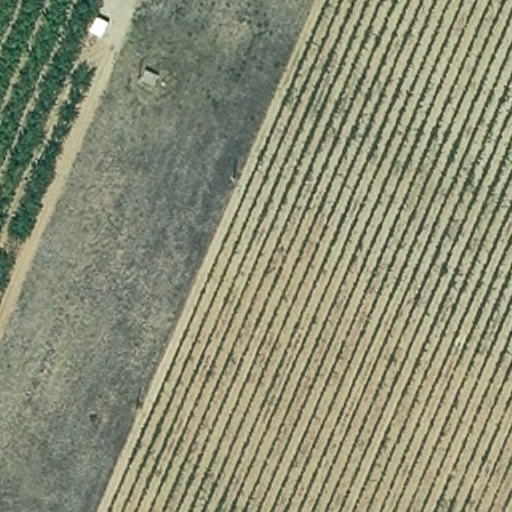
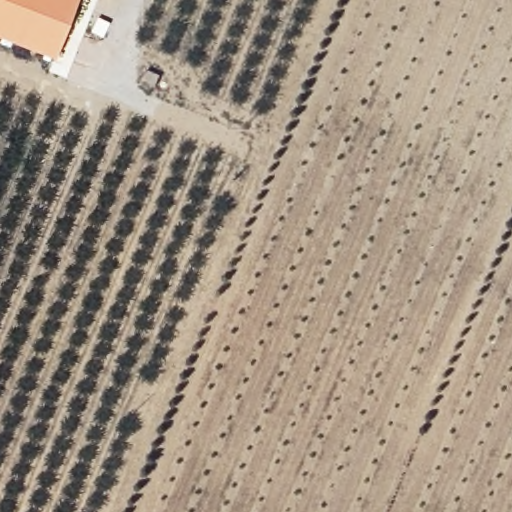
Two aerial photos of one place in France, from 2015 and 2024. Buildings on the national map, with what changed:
new [(0,37),(0,0),(77,0),(53,58),(0,37)]

